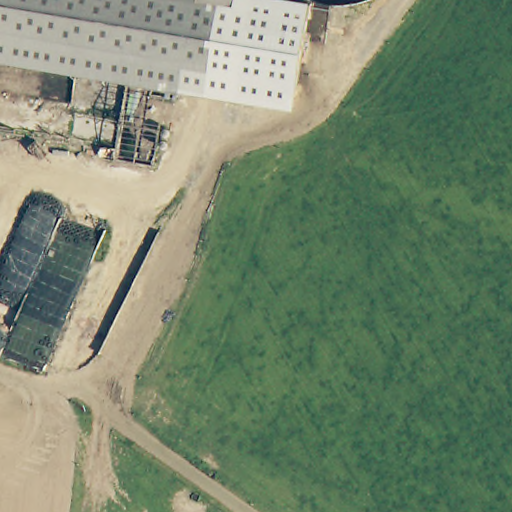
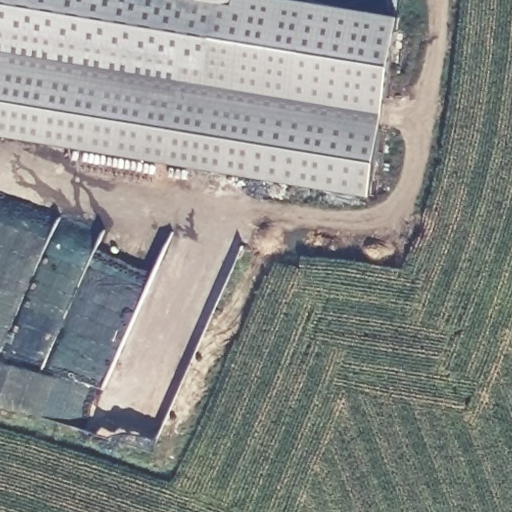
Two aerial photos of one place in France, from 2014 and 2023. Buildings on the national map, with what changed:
unchanged [(218,7),(206,72),(0,40),(0,0),(177,0),(218,7)]
new [(370,196),(0,134),(0,40),(206,72),(218,7),(231,9),(232,0),(305,0),(311,1),(400,14),(370,196)]
unchanged [(177,0),(232,0),(231,9),(218,7),(177,0)]

